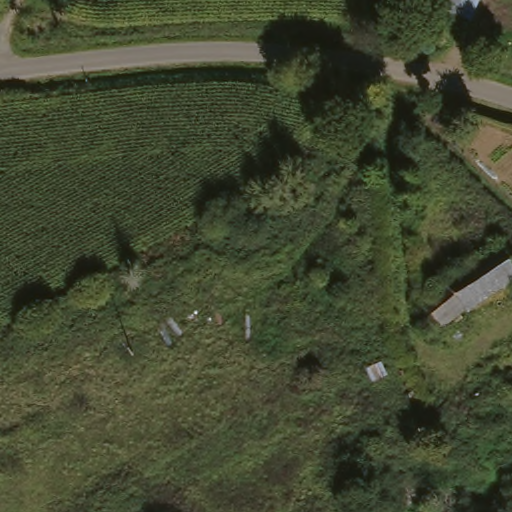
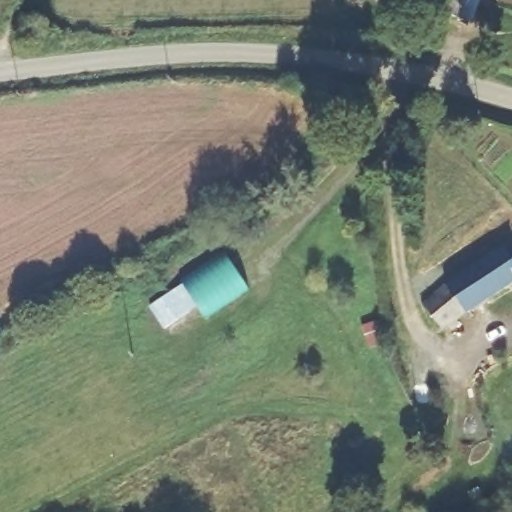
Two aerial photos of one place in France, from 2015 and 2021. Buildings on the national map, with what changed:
unchanged [(434,7),(438,0),(482,0),(471,22),(434,7)]
unchanged [(473,313),(471,310),(447,330),(428,306),(451,286),(511,247),(512,249),(512,288),(473,313)]
new [(248,287),(204,316),(183,285),(225,254),(248,287)]

